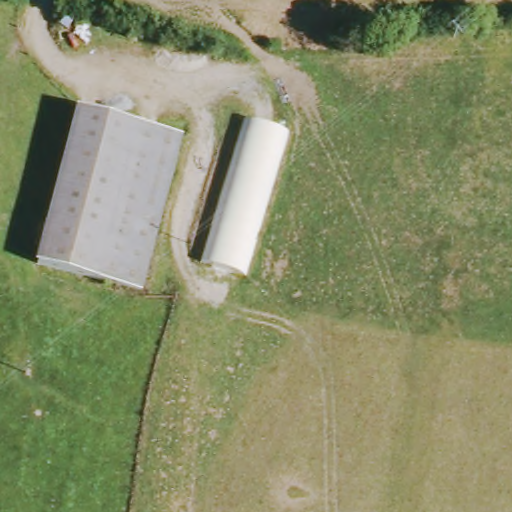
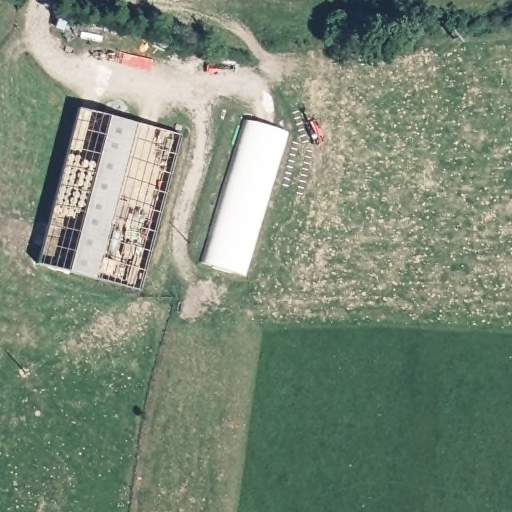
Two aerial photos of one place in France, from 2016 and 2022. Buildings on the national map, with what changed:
unchanged [(177,135),(136,290),(32,263),(72,108),(177,135)]
unchanged [(282,130),(239,275),(204,263),(247,120),(282,130)]

